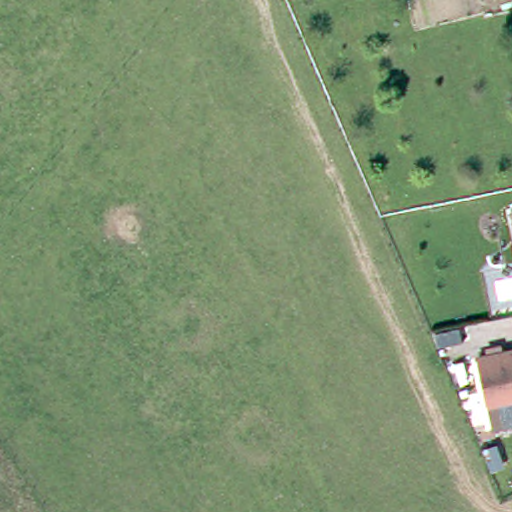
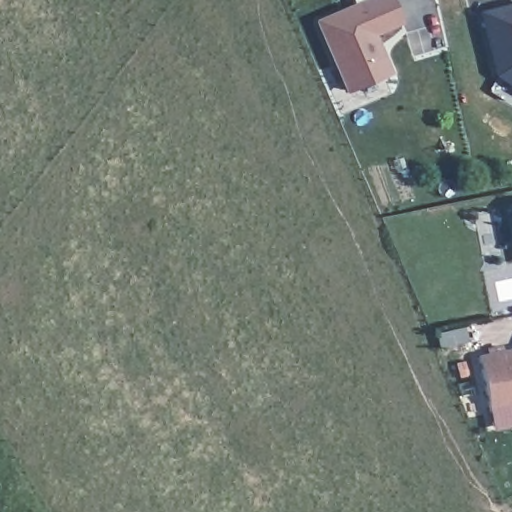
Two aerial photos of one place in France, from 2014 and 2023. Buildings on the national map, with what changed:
new [(345,92),(314,20),(358,0),(390,0),(401,24),(376,35),(390,73),(345,92)]
new [(494,76),(479,9),(512,2),(512,87),(494,76)]
unchanged [(512,350),(512,401),(492,406),(482,357),(512,350)]
unchanged [(512,401),(512,427),(494,431),(492,406),(512,401)]

